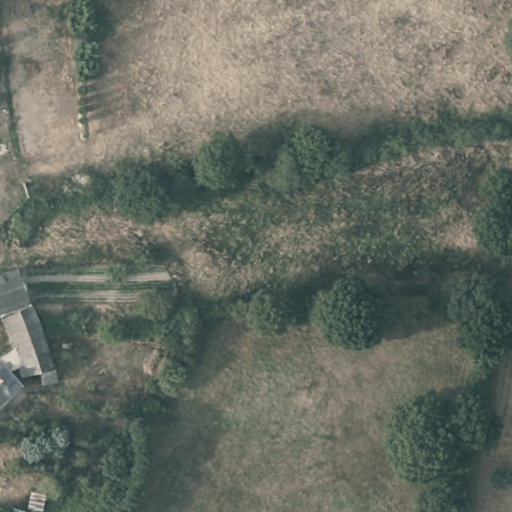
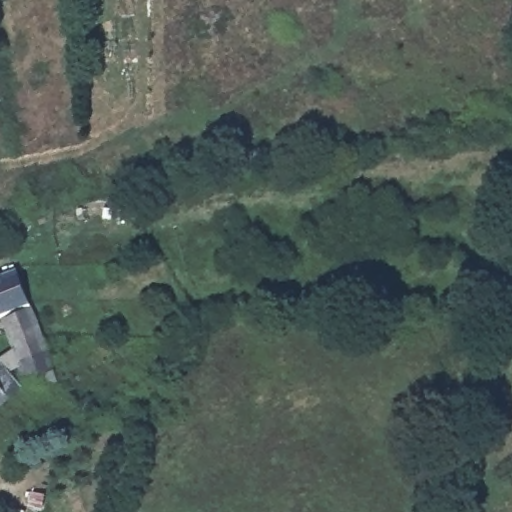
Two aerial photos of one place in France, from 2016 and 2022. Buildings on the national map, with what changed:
unchanged [(40,317),(9,328),(2,311),(0,312),(0,272),(21,264),(34,303),(40,317)]
unchanged [(15,344),(9,328),(40,317),(47,334),(61,377),(48,380),(41,369),(28,373),(22,362),(14,369),(22,382),(0,402),(0,357),(15,344)]
unchanged [(39,511),(28,510),(30,493),(43,495),(39,511)]

